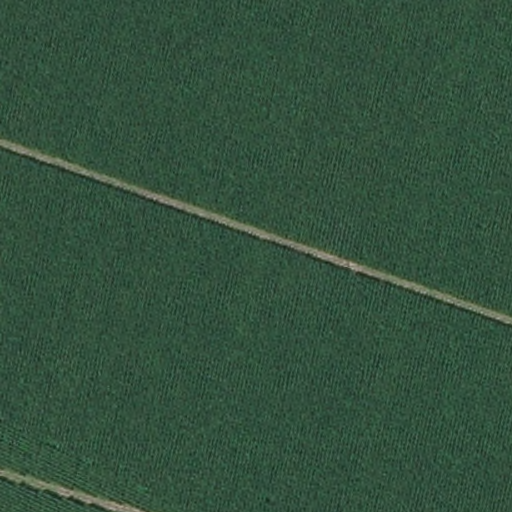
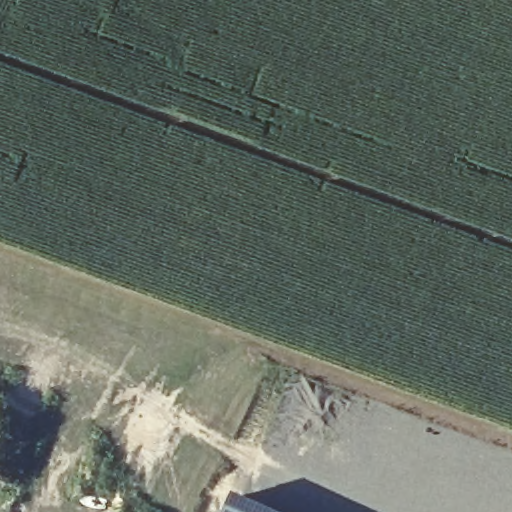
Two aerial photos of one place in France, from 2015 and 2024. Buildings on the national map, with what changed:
new [(239,492),(269,508),(278,512),(243,512),(232,507),(239,492)]
new [(232,507),(243,512),(229,512),(232,507)]

